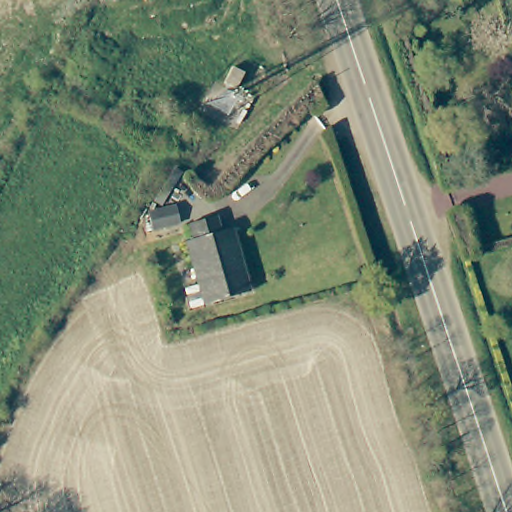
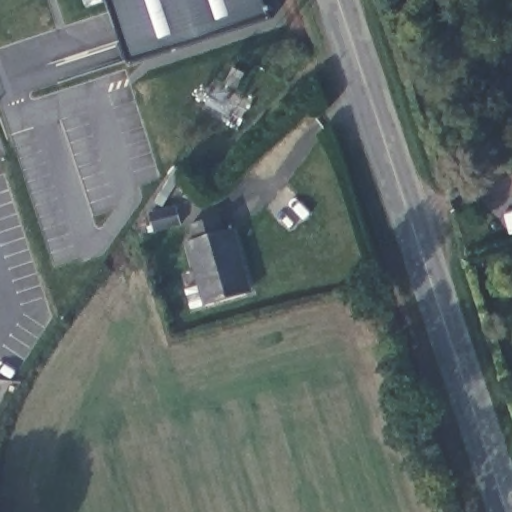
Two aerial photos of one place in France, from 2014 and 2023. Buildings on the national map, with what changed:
new [(109,0),(263,0),(269,19),(129,63),(109,0)]
unchanged [(204,306),(190,310),(185,291),(199,287),(186,242),(192,240),(187,224),(215,217),(219,232),(232,228),(244,267),(237,270),(244,294),(204,306)]

